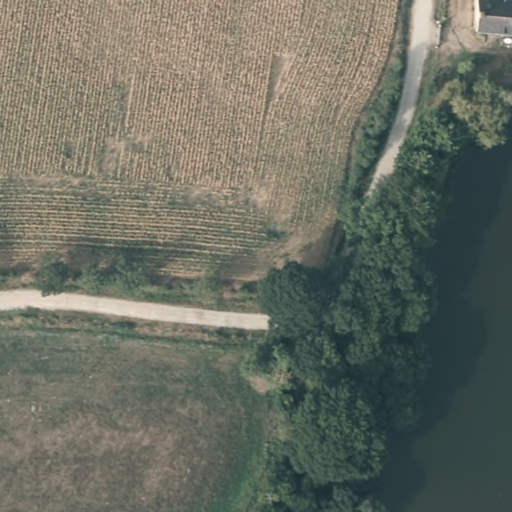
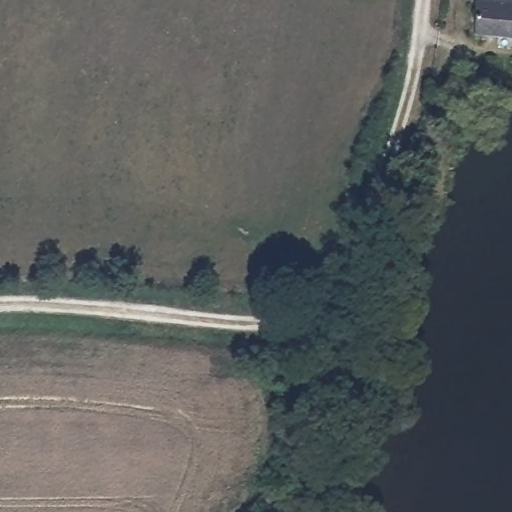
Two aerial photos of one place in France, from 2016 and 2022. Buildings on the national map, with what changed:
unchanged [(471,32),(474,0),(512,0),(512,35),(471,32)]

